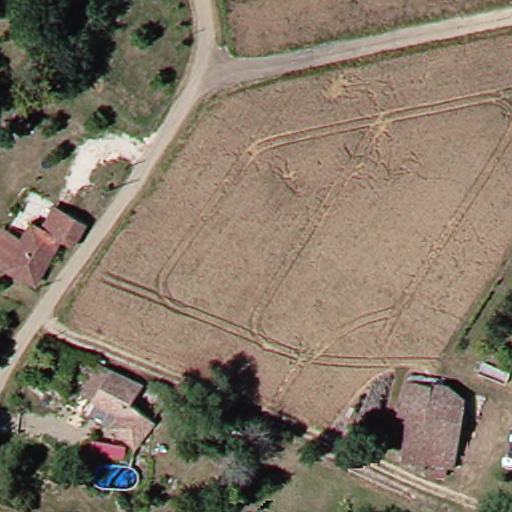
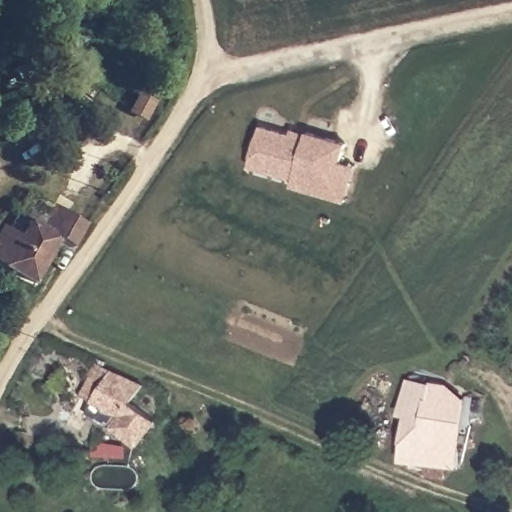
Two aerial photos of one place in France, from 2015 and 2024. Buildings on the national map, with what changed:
new [(288,138),(286,137),(287,133),(303,137),(303,136),(341,147),(336,166),(330,185),(292,174),(290,181),(288,181),(245,167),(257,129),(288,138)]
new [(288,181),(290,181),(292,174),(330,185),(336,166),(350,170),(340,204),(286,187),(288,181)]
unchanged [(35,290),(6,272),(7,269),(0,264),(0,256),(11,236),(24,242),(40,212),(52,220),(58,213),(85,230),(70,252),(59,247),(35,290)]
unchanged [(128,405),(156,418),(144,447),(83,422),(97,390),(85,385),(91,367),(136,387),(128,405)]
unchanged [(403,417),(396,415),(405,380),(425,382),(425,397),(458,405),(458,475),(448,475),(448,486),(417,476),(417,465),(398,462),(403,417)]

